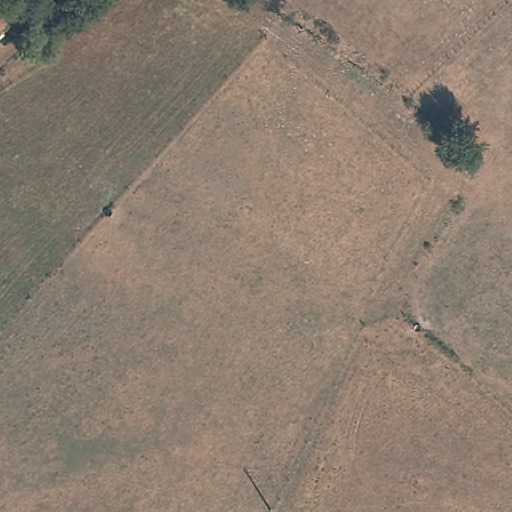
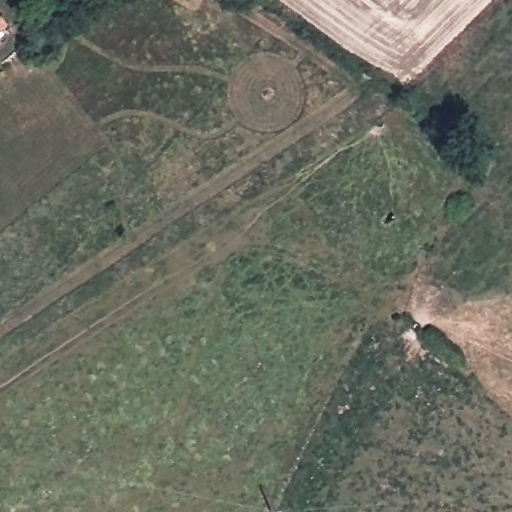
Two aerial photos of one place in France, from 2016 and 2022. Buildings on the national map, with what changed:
unchanged [(6,17),(0,23),(0,11),(6,17)]

